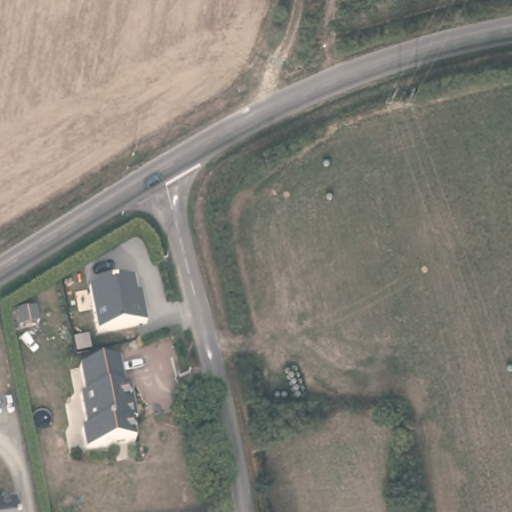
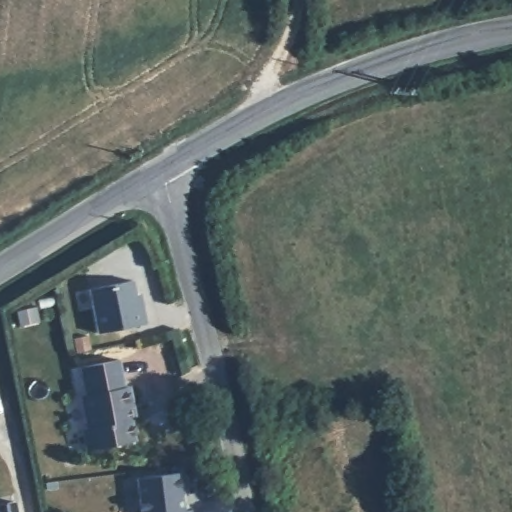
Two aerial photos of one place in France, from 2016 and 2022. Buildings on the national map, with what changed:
unchanged [(88,292),(133,282),(136,296),(140,296),(145,324),(96,334),(88,292)]
unchanged [(135,419),(138,438),(89,447),(85,425),(90,424),(83,384),(82,383),(87,382),(83,360),(123,352),(127,374),(132,374),(136,398),(140,418),(135,419)]
new [(179,473),(184,511),(192,510),(192,512),(141,512),(137,478),(179,473)]
unchanged [(14,499),(15,512),(0,512),(0,501),(14,499)]

